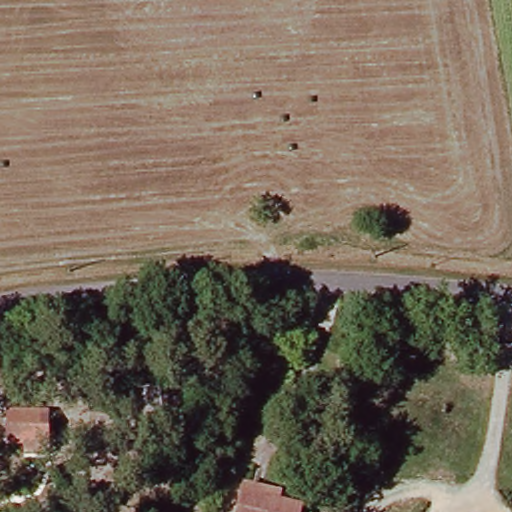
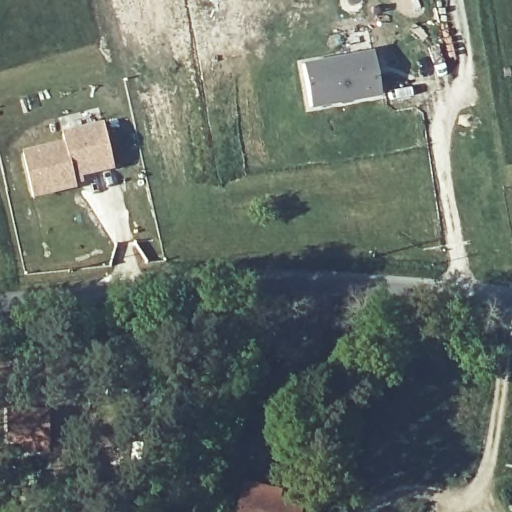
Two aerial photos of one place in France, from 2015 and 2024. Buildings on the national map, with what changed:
new [(309,106),(298,65),(367,47),(377,89),(309,106)]
new [(111,170),(71,179),(73,189),(30,198),(21,155),(62,145),(61,135),(102,126),(111,170)]
unchanged [(123,411),(119,390),(120,387),(136,385),(140,409),(123,411)]
unchanged [(19,453),(19,442),(3,443),(2,443),(2,412),(6,412),(41,411),(42,442),(42,452),(19,453)]
unchanged [(246,483),(281,490),(280,499),(302,503),(300,512),(240,512),(245,492),(246,483)]

